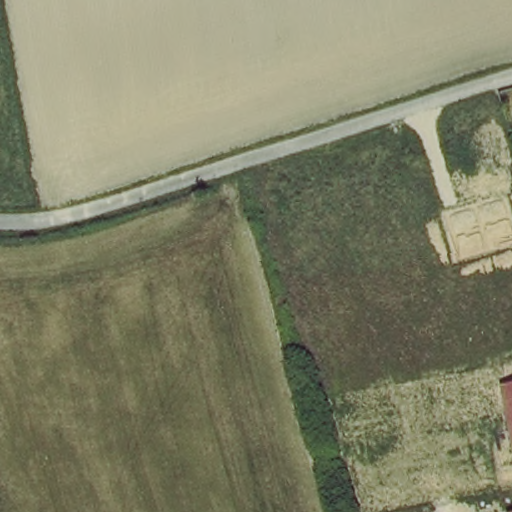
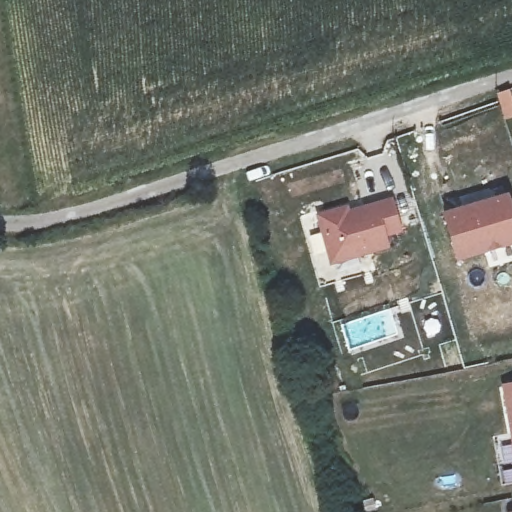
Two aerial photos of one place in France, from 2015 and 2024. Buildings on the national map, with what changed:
new [(418,220),(402,224),(395,200),(411,196),(418,220)]
new [(512,216),(512,244),(457,260),(445,217),(507,198),(512,216)]
new [(345,210),(347,215),(390,202),(399,231),(384,235),(387,247),(332,262),(319,217),(337,212),(345,210)]
unchanged [(512,384),(512,444),(502,386),(512,384)]

